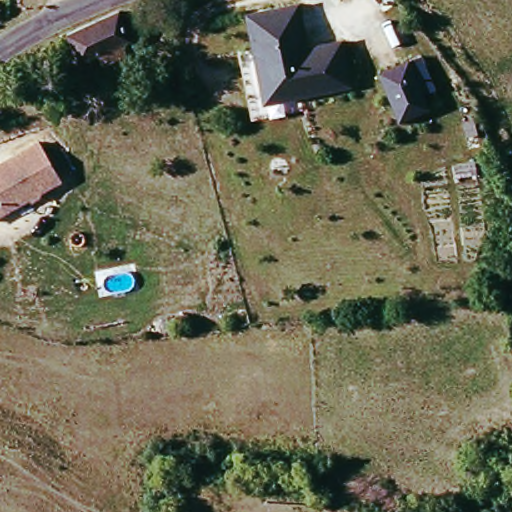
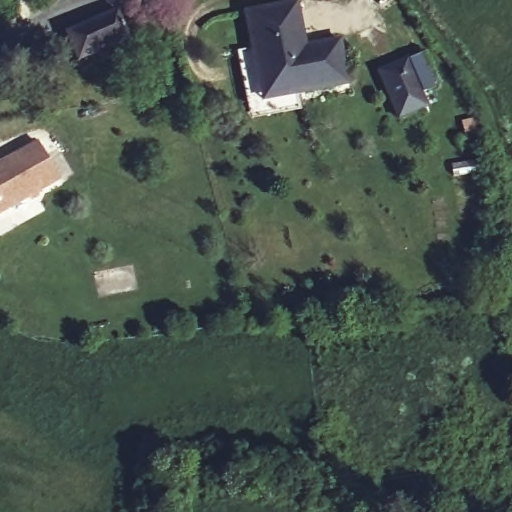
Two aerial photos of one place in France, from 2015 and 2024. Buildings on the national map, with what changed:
unchanged [(296,1),(305,40),(341,34),(351,84),(263,98),(246,12),(296,1)]
unchanged [(63,38),(114,19),(125,48),(74,67),(63,38)]
unchanged [(400,124),(380,79),(420,61),(434,95),(420,100),(426,112),(400,124)]
unchanged [(44,145),(65,181),(0,219),(0,170),(44,145)]

